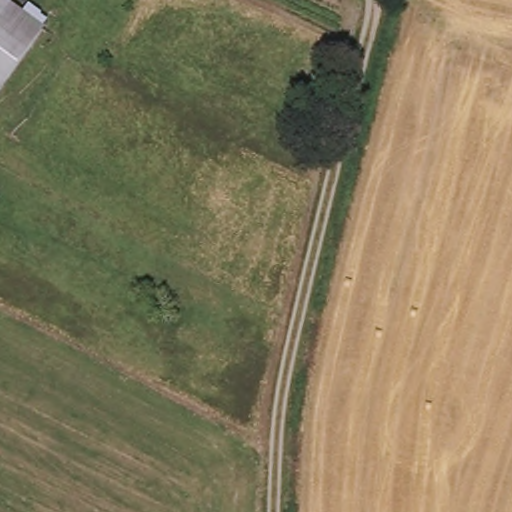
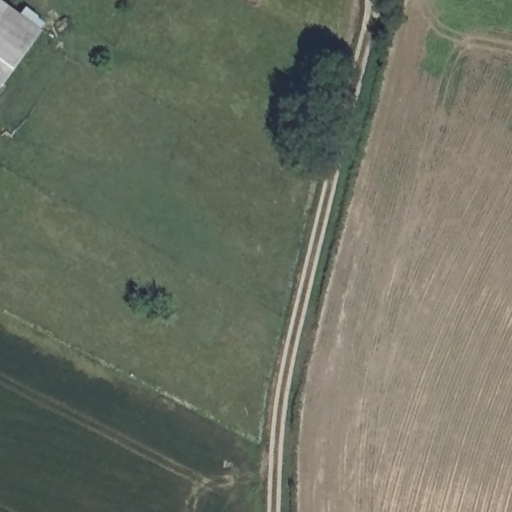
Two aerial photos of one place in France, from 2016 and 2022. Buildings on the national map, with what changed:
unchanged [(0,4),(0,0),(3,0),(2,1),(0,4)]
unchanged [(41,29),(0,87),(0,4),(2,1),(41,29)]

